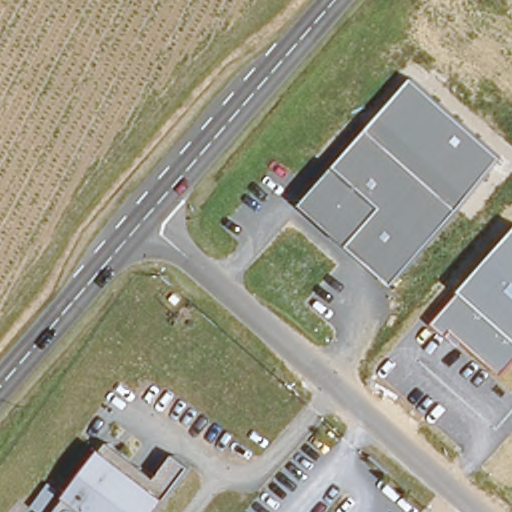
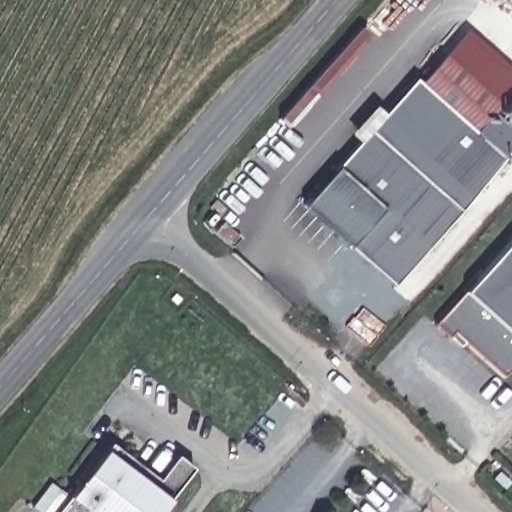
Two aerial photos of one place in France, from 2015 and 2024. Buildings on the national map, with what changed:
new [(467,28),(512,69),(512,147),(504,157),(419,80),(467,28)]
unchanged [(396,285),(303,205),(419,80),(506,158),(396,285)]
unchanged [(467,343),(463,348),(438,324),(466,293),(464,291),(512,237),(512,364),(501,375),(467,343)]
unchanged [(159,512),(59,512),(70,498),(67,496),(104,447),(109,451),(114,444),(158,478),(175,455),(191,467),(170,497),(159,512)]

